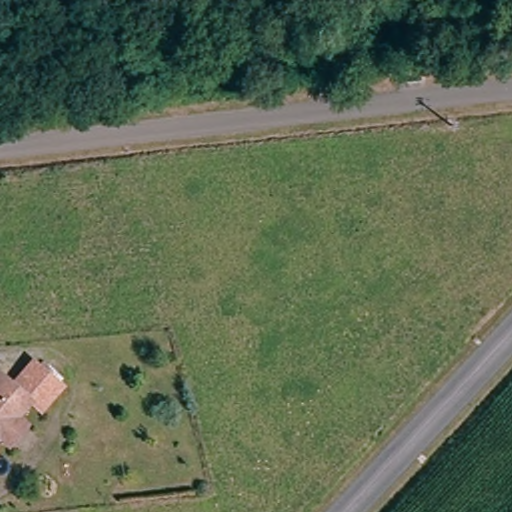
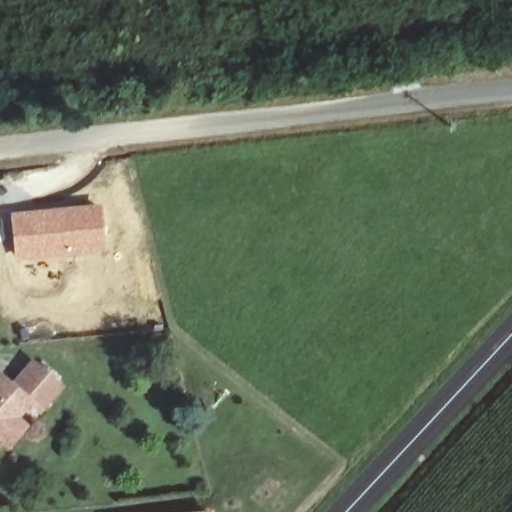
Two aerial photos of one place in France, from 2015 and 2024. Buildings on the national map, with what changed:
new [(100,202),(105,253),(15,262),(9,211),(100,202)]
unchanged [(44,391),(24,415),(14,407),(5,419),(0,425),(0,385),(15,367),(44,391)]
unchanged [(0,443),(0,428),(7,434),(0,443)]
new [(212,508),(212,512),(174,512),(212,508)]

